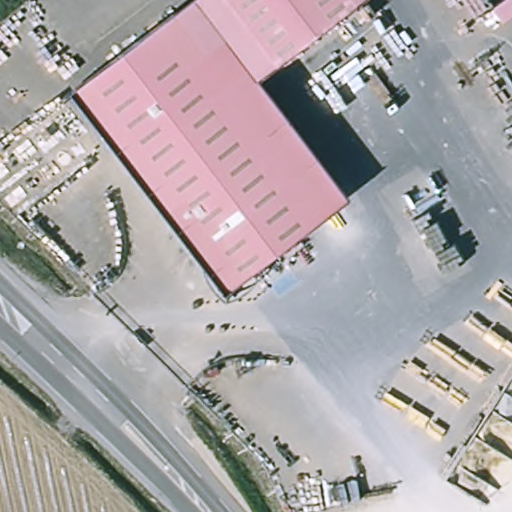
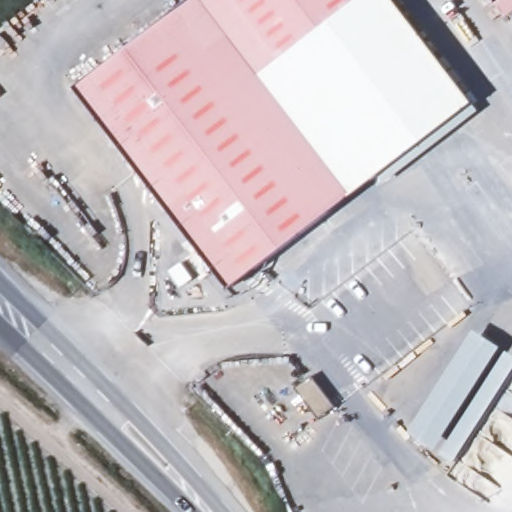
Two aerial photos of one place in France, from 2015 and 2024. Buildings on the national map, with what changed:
unchanged [(229,0),(277,65),(259,78),(348,199),(326,215),(176,12),(192,0),(229,0)]
unchanged [(277,65),(229,0),(349,0),(354,7),(277,65)]
new [(348,199),(259,78),(277,65),(354,7),(365,0),(391,0),(469,105),(348,199)]
unchanged [(349,0),(365,0),(354,7),(349,0)]
unchanged [(491,3),(496,0),(512,0),(512,13),(500,21),(491,3)]
unchanged [(326,215),(225,292),(74,89),(176,12),(326,215)]
new [(475,332),(501,349),(436,451),(409,434),(475,332)]
new [(456,464),(443,456),(508,355),(512,357),(512,377),(456,464)]

